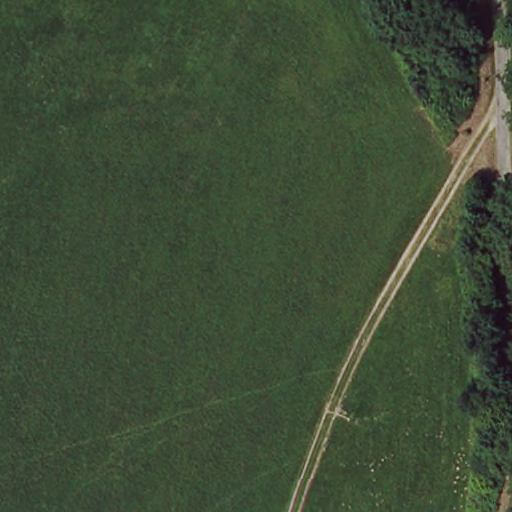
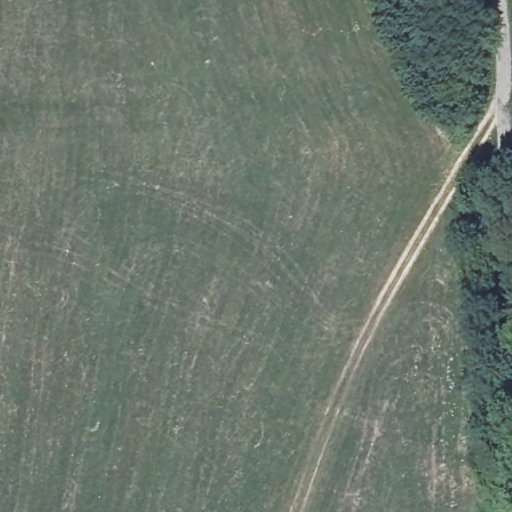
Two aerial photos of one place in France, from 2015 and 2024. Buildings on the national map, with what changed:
[]

